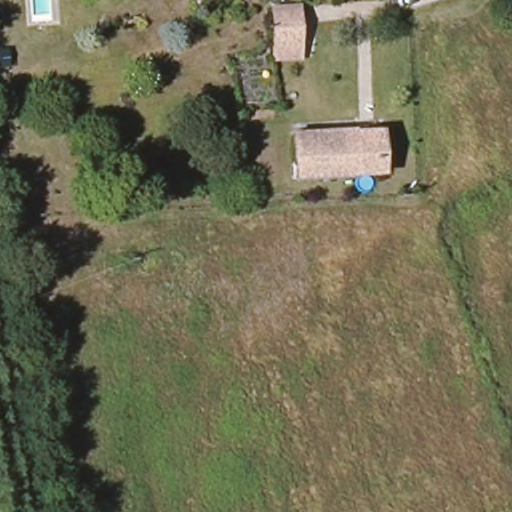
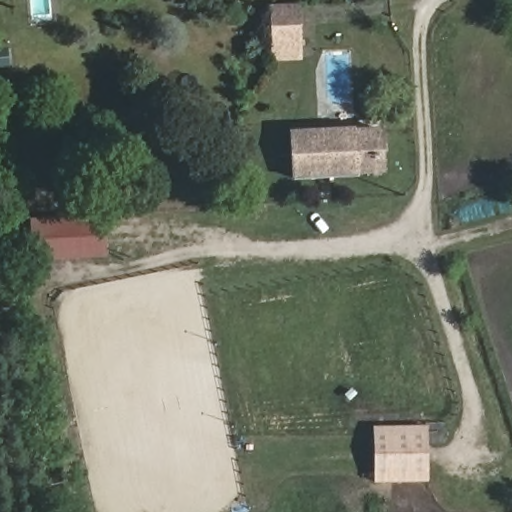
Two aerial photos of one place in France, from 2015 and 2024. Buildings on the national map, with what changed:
unchanged [(275,55),(266,12),(298,8),(305,54),(275,60),(275,55)]
unchanged [(291,187),(280,130),(377,120),(388,184),(291,187)]
new [(105,215),(106,256),(32,260),(30,220),(105,215)]
new [(374,481),(372,426),(427,425),(428,480),(374,481)]

